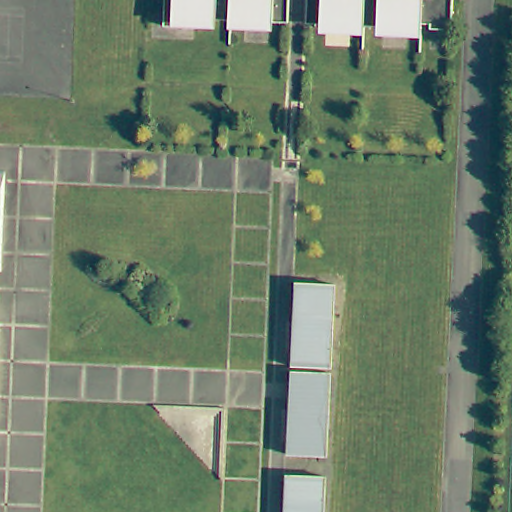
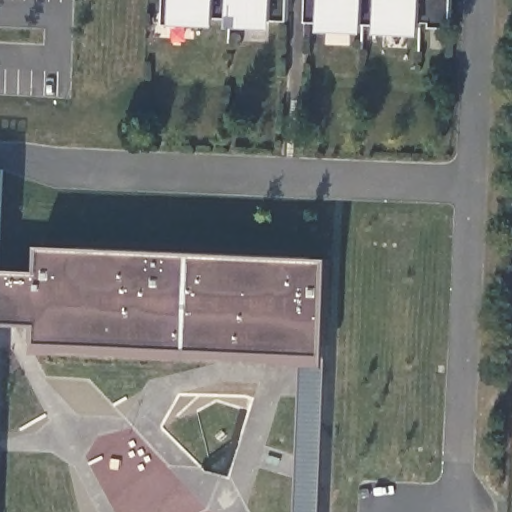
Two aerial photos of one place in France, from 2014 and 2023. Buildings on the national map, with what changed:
unchanged [(205,20),(204,28),(170,27),(170,0),(292,0),(291,24),(205,20)]
unchanged [(430,31),(430,26),(421,26),(420,30),(308,25),(309,0),(451,0),(450,32),(430,31)]
demolished [(1,271),(0,272),(0,169),(6,169),(1,271)]
new [(40,353),(40,326),(0,325),(0,179),(5,181),(5,192),(1,270),(43,271),(45,246),(334,259),(329,365),(40,353)]
demolished [(1,301),(0,304),(0,296),(1,297),(1,301)]
demolished [(327,371),(323,455),(284,453),(288,369),(327,371)]
demolished [(322,474),(320,512),(281,512),(283,472),(322,474)]
new [(299,488),(323,489),(322,512),(298,512),(299,488)]

